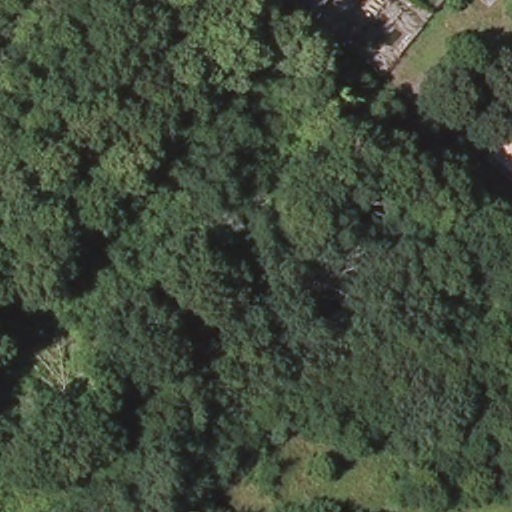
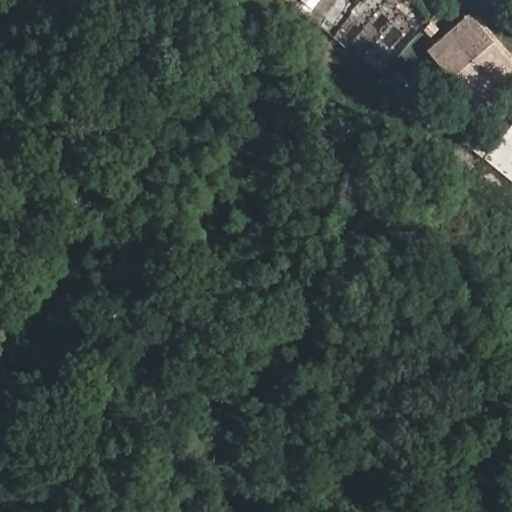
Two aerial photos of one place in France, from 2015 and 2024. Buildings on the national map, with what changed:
unchanged [(302,0),(326,0),(316,12),(302,0)]
new [(473,16),(512,62),(512,71),(486,93),(476,101),(432,50),(442,42),(473,16)]
unchanged [(484,155),(506,127),(512,132),(512,178),(484,155)]

